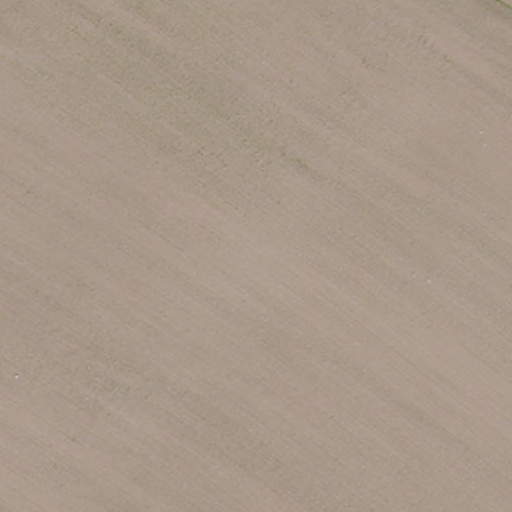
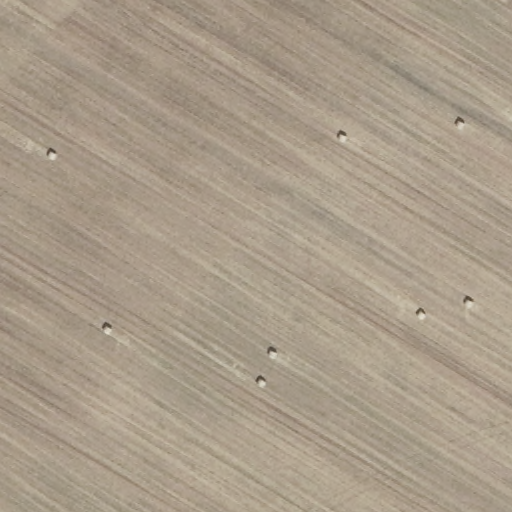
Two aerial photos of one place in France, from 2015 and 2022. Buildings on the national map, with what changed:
[]

